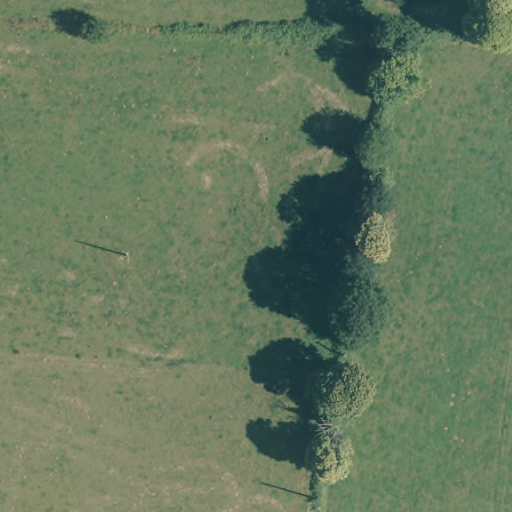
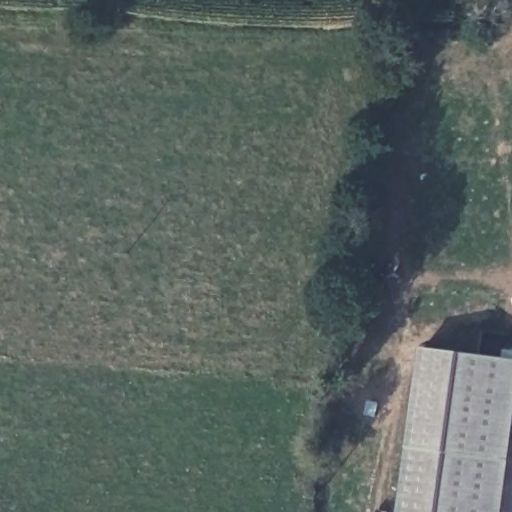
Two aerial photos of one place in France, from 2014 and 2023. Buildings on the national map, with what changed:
new [(512,358),(512,450),(504,512),(400,512),(421,347),(512,358)]

